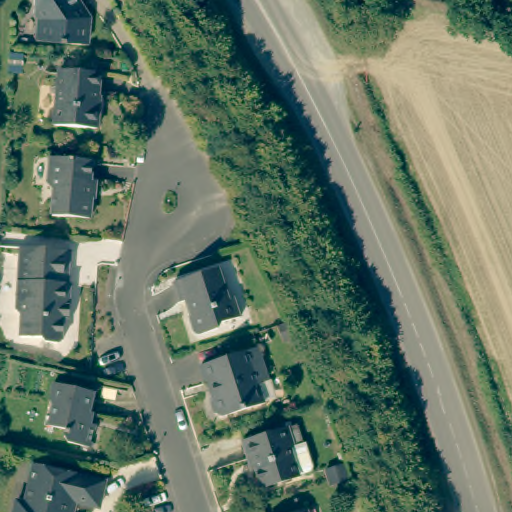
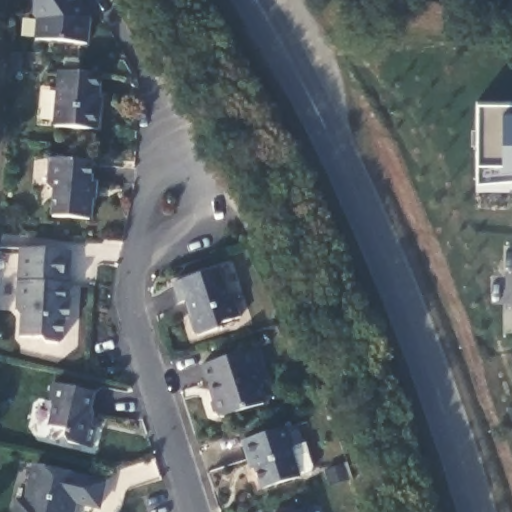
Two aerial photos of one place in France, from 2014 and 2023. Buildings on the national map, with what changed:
unchanged [(40,39),(43,19),(39,11),(40,0),(84,0),(95,16),(92,43),(40,39)]
unchanged [(106,75),(102,106),(104,107),(102,129),(61,125),(66,70),(106,75)]
new [(477,187),(477,179),(478,101),(512,101),(512,186),(477,187)]
unchanged [(97,161),(96,180),(98,181),(94,219),(57,215),(60,192),(55,186),(56,157),(97,161)]
unchanged [(69,318),(68,340),(63,344),(51,342),(46,337),(25,335),(26,314),(21,308),(25,254),(26,247),(43,248),(76,250),(74,283),(78,284),(76,305),(75,318),(69,318)]
unchanged [(220,268),(230,298),(236,297),(241,316),(221,322),(218,329),(199,335),(192,331),(189,318),(192,313),(188,300),(180,301),(173,281),(220,268)]
unchanged [(263,347),(273,379),(263,382),(270,403),(227,416),(220,413),(217,401),(220,394),(216,381),(211,382),(206,365),(263,347)]
unchanged [(105,391),(98,422),(106,425),(101,447),(79,441),(75,434),(76,428),(59,423),(64,403),(60,400),(63,382),(105,391)]
unchanged [(294,427),(299,445),(296,452),(305,476),(267,488),(257,458),(254,459),(247,441),(294,427)]
unchanged [(106,481),(100,508),(74,502),(71,512),(16,512),(19,501),(28,503),(38,465),(106,481)]
unchanged [(307,510),(307,512),(302,512),(307,510)]

